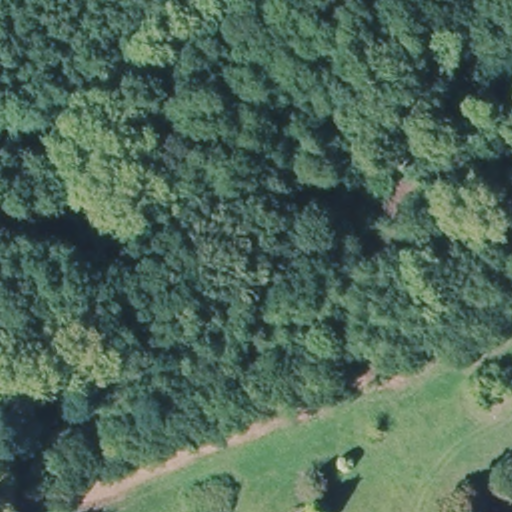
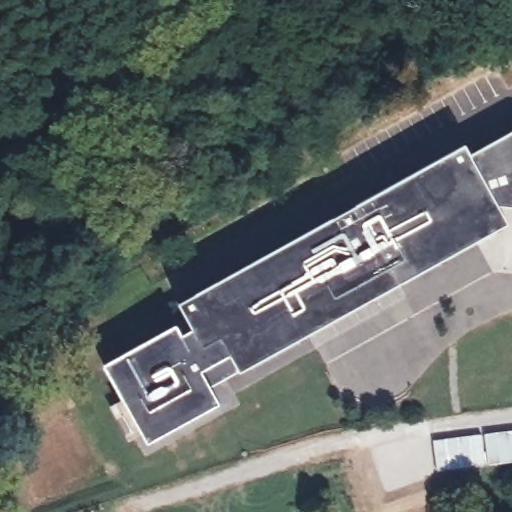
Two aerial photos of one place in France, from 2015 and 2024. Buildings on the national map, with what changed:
new [(506,221),(240,372),(221,340),(204,350),(198,340),(180,304),(465,145),(470,156),(512,133),(512,208),(498,208),(506,221)]
demolished [(288,253),(356,215),(365,230),(296,267),(288,253)]
new [(211,388),(220,403),(148,443),(107,370),(104,365),(176,325),(180,332),(188,345),(211,388)]
new [(198,340),(204,350),(221,340),(240,372),(211,388),(188,345),(198,340)]

